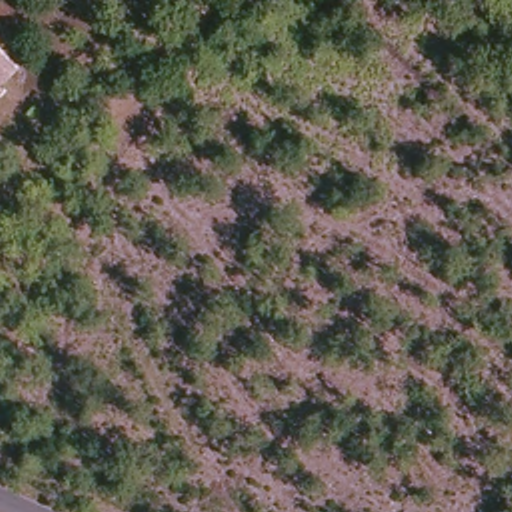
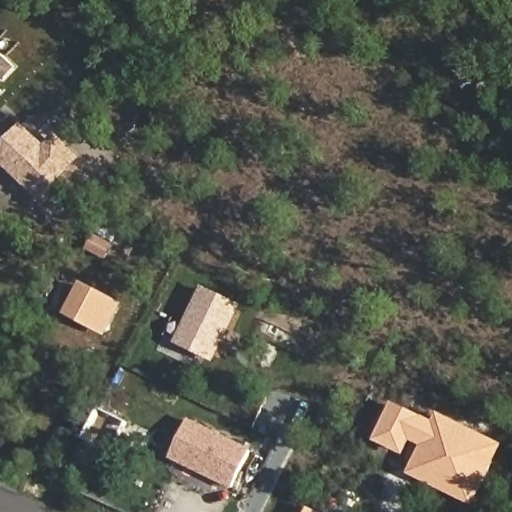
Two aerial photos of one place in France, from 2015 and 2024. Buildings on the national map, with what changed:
unchanged [(0,51),(14,64),(5,75),(0,81),(0,51)]
new [(59,137),(82,158),(39,200),(0,162),(0,147),(23,124),(49,147),(59,137)]
new [(82,281),(120,302),(116,308),(120,311),(106,337),(64,315),(82,281)]
new [(202,290),(236,306),(211,358),(177,342),(202,290)]
new [(393,401),(435,421),(438,412),(505,445),(475,507),(407,475),(421,446),(412,442),(405,456),(374,441),(393,401)]
new [(188,420),(250,451),(232,488),(170,457),(188,420)]
new [(310,510),(314,512),(310,512),(310,510)]

